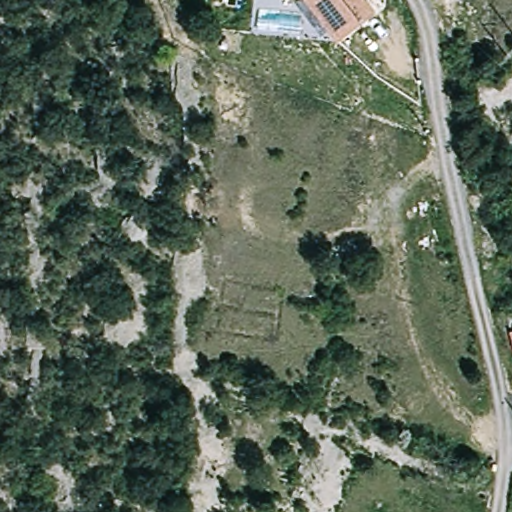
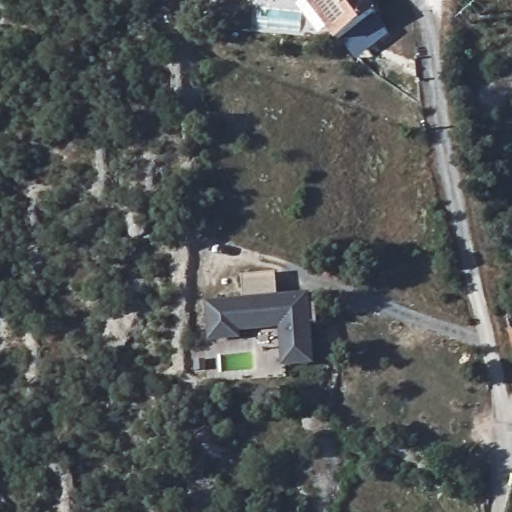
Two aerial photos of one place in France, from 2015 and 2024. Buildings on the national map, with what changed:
unchanged [(376,14),(341,42),(308,0),(365,0),(376,14)]
new [(207,302),(245,300),(244,276),(278,273),(279,297),(312,295),(317,365),(285,367),(282,330),(243,332),(243,339),(210,341),(207,302)]
unchanged [(512,330),(512,343),(509,331),(512,330)]

